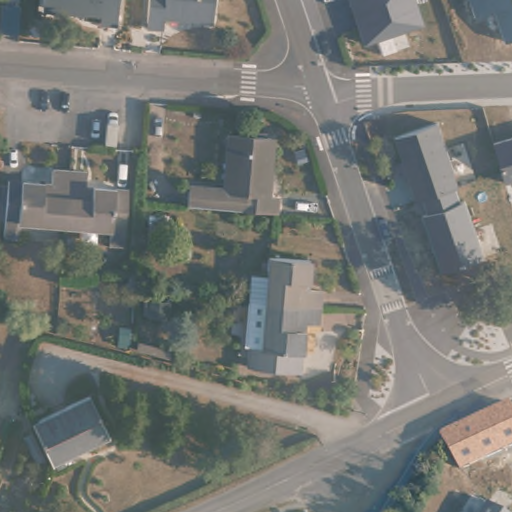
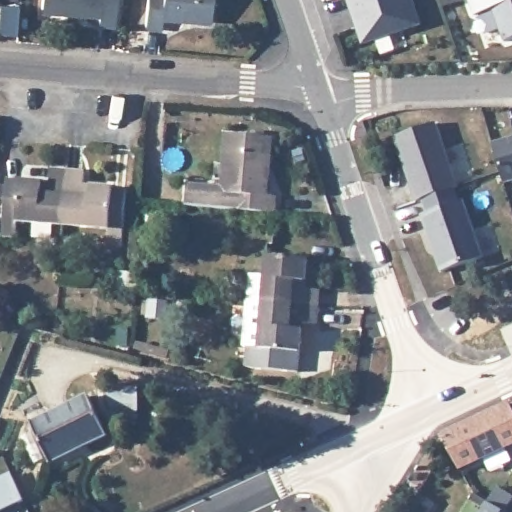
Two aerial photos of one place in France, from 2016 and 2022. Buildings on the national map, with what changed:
unchanged [(100,11),(45,8),(45,0),(119,0),(116,23),(101,22),(100,11)]
unchanged [(155,29),(142,28),(144,0),(218,0),(216,21),(157,18),(155,29)]
unchanged [(362,45),(347,0),(414,0),(423,25),(362,45)]
unchanged [(505,42),(493,9),(474,15),(469,0),(512,0),(512,39),(505,42)]
unchanged [(190,210),(193,178),(226,180),(232,124),(273,126),(270,164),(276,166),(275,197),(281,199),(280,217),(190,210)]
unchanged [(428,213),(422,199),(415,200),(395,139),(437,125),(458,186),(453,189),(458,202),(463,199),(483,259),(441,272),(421,217),(428,213)]
unchanged [(505,184),(493,144),(512,138),(512,181),(505,184)]
unchanged [(20,223),(19,234),(5,233),(10,180),(54,183),(55,170),(70,171),(66,227),(20,223)]
unchanged [(70,171),(86,173),(85,187),(130,192),(126,245),(110,243),(110,230),(66,227),(70,171)]
unchanged [(267,302),(272,254),(310,258),(307,287),(325,289),(324,307),(267,302)]
unchanged [(322,321),(306,320),(302,354),(300,373),(256,369),(248,367),(250,349),(253,318),(248,318),(250,301),(267,302),(324,307),(322,321)]
unchanged [(53,468),(32,426),(90,398),(111,440),(53,468)]
unchanged [(505,408),(507,406),(512,414),(512,442),(460,470),(444,442),(505,408)]
new [(20,503),(0,512),(0,479),(8,475),(20,503)]
unchanged [(486,504),(503,512),(481,512),(486,504)]

